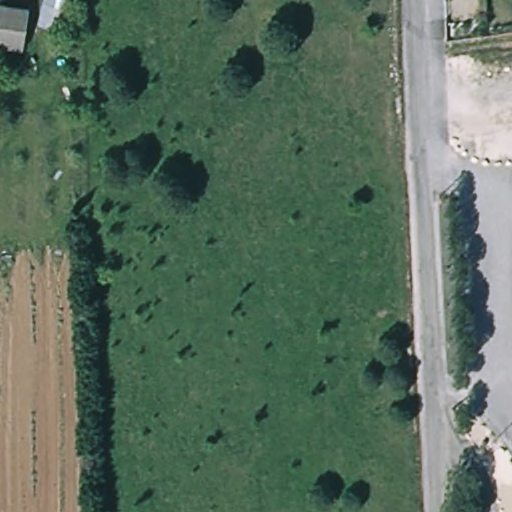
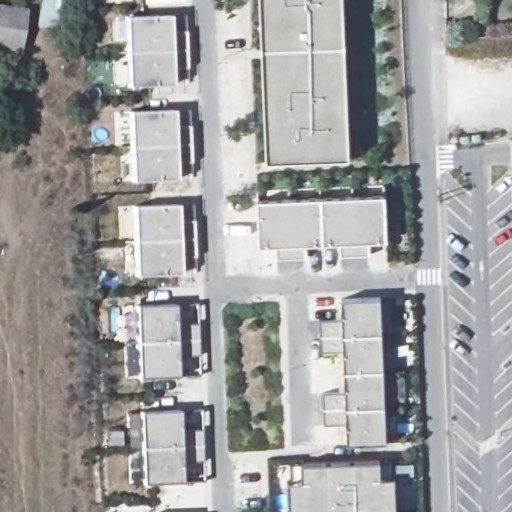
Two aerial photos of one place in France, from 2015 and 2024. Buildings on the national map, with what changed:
new [(265,162),(258,0),(341,0),(348,159),(265,162)]
unchanged [(26,49),(0,46),(0,6),(31,11),(26,49)]
new [(168,15),(169,32),(184,31),(185,49),(125,52),(124,17),(168,15)]
new [(185,49),(186,68),(171,69),(171,85),(127,87),(125,52),(185,49)]
new [(172,110),(173,126),(188,126),(189,144),(129,147),(128,112),(172,110)]
new [(189,144),(190,162),(174,163),(175,180),(130,182),(129,147),(189,144)]
new [(383,195),(385,241),(368,242),(369,255),(339,256),(339,242),(305,244),(305,257),(276,259),(275,244),(258,246),(256,200),(383,195)]
new [(176,205),(177,221),(192,220),(193,239),(133,241),(131,206),(176,205)]
new [(193,239),(193,257),(178,257),(179,275),(134,276),(133,241),(193,239)]
new [(340,319),(339,299),(379,298),(380,334),(318,337),(317,320),(340,319)]
new [(174,304),(176,326),(197,324),(198,355),(177,356),(178,376),(138,379),(135,307),(174,304)]
new [(380,334),(382,370),(342,372),(341,352),(319,353),(318,337),(380,334)]
new [(342,392),(342,372),(382,370),(383,407),(321,409),(320,393),(342,392)]
new [(383,407),(384,443),(345,445),(344,425),(322,425),(321,409),(383,407)]
new [(178,410),(179,431),(201,430),(203,461),(181,463),(182,483),(143,484),(139,412),(178,410)]
new [(295,481),(299,481),(298,464),(378,460),(379,478),(383,478),(384,512),(296,512),(295,481)]
new [(388,460),(389,477),(393,477),(394,512),(384,512),(383,478),(379,478),(378,460),(388,460)]
new [(289,482),(288,464),(298,464),(299,481),(295,481),(296,512),(286,512),(285,482),(289,482)]

